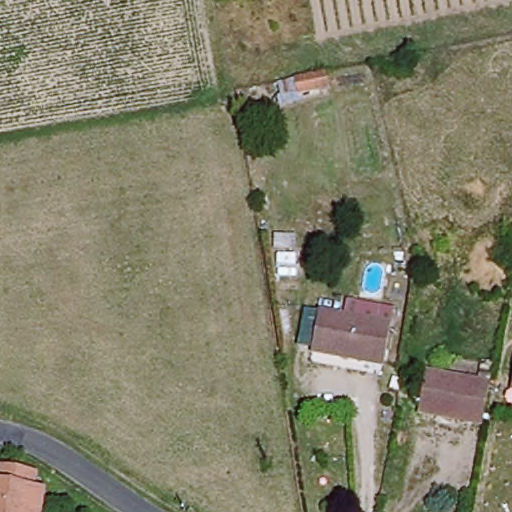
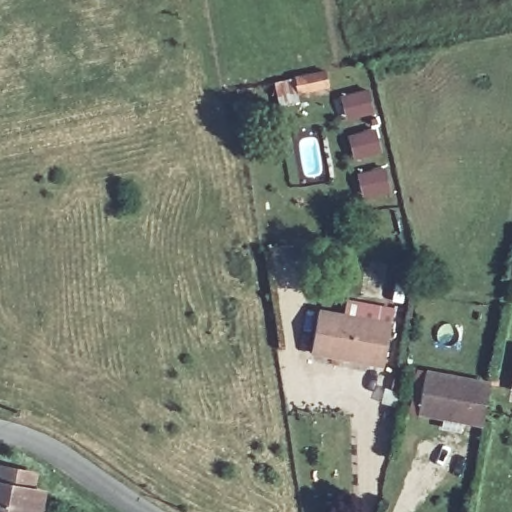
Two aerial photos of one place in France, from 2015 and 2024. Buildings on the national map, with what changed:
unchanged [(291,79),(321,74),(323,89),(295,94),(291,79)]
unchanged [(382,361),(312,347),(321,306),(390,321),(382,361)]
unchanged [(479,423),(419,411),(427,373),(486,384),(479,423)]
unchanged [(32,493),(44,496),(41,512),(0,512),(0,470),(34,477),(32,493)]

